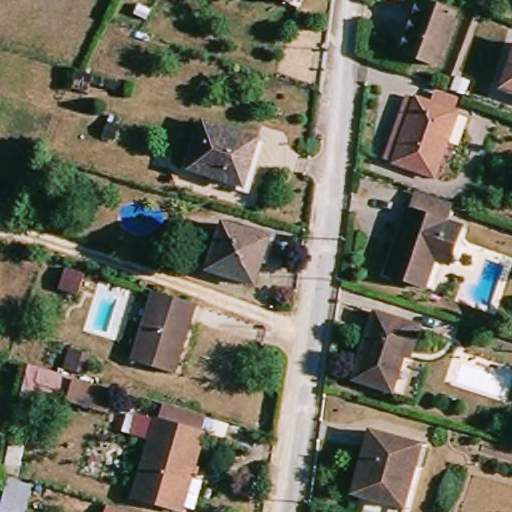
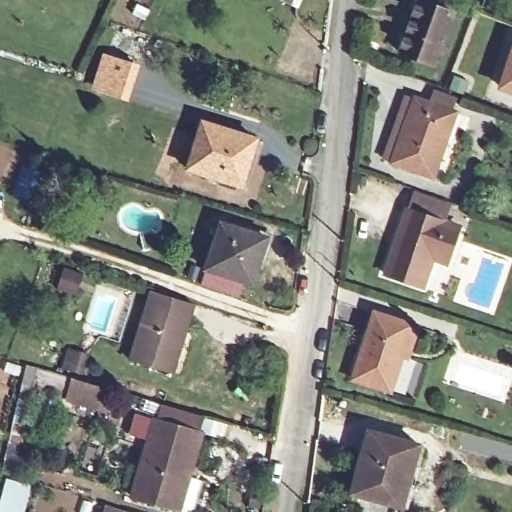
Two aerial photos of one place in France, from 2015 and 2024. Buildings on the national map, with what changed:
unchanged [(295,0),(292,7),(275,0),(295,0)]
unchanged [(442,62),(420,54),(407,48),(426,0),(427,0),(459,15),(442,62)]
new [(102,52),(136,63),(133,72),(137,74),(128,101),(89,89),(102,52)]
unchanged [(505,89),(512,69),(512,91),(505,89)]
unchanged [(397,160),(417,97),(460,111),(438,174),(397,160)]
unchanged [(205,123),(260,141),(247,181),(192,163),(205,123)]
unchanged [(408,215),(464,225),(459,261),(442,258),(436,288),(397,280),(408,215)]
unchanged [(262,286),(210,270),(222,226),(275,242),(262,286)]
unchanged [(155,291),(198,305),(178,375),(134,361),(155,291)]
unchanged [(400,392),(359,378),(379,314),(420,328),(400,392)]
unchanged [(27,363),(72,376),(113,387),(107,409),(67,399),(20,386),(27,363)]
unchanged [(418,456),(370,442),(377,418),(424,432),(418,456)]
unchanged [(155,421),(202,432),(185,506),(138,495),(155,421)]
unchanged [(402,512),(374,512),(350,505),(370,442),(418,456),(402,512)]
unchanged [(32,484),(25,512),(0,512),(0,501),(7,477),(32,484)]
new [(107,506),(124,512),(105,512),(107,506)]

